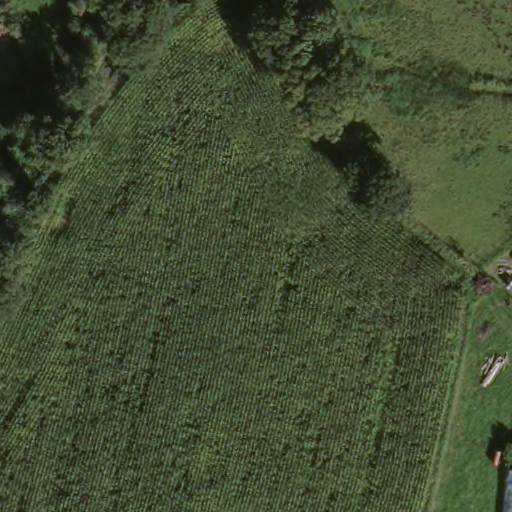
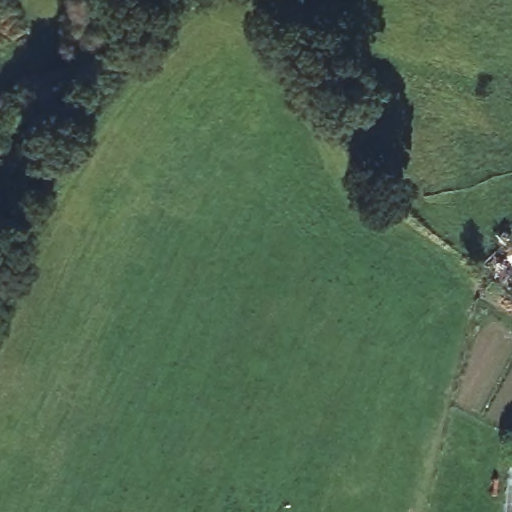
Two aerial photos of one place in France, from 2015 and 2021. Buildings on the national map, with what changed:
unchanged [(512,466),(512,512),(505,512),(508,466),(512,466)]

